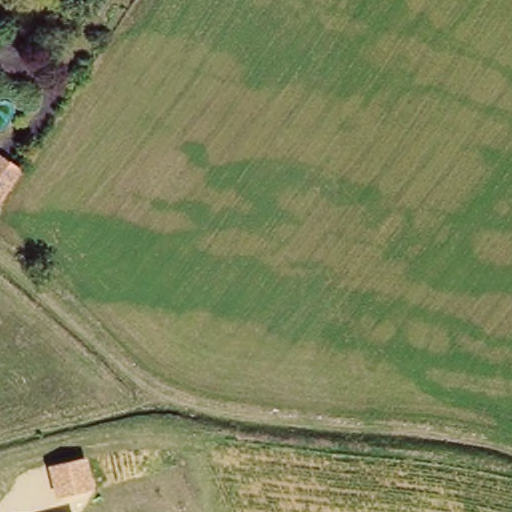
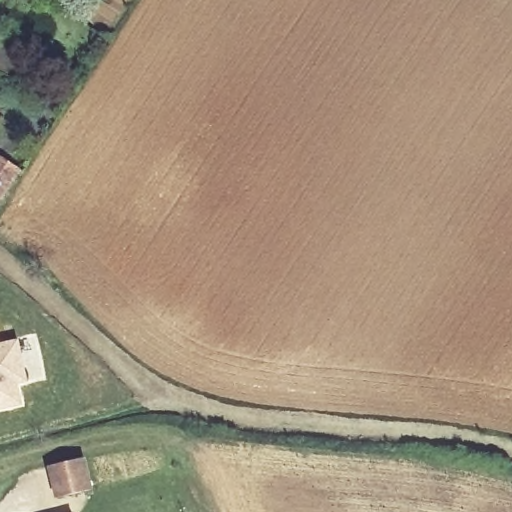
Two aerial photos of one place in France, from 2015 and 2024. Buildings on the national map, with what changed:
unchanged [(0,165),(7,155),(30,172),(8,203),(0,197),(0,165)]
new [(31,387),(20,389),(22,404),(0,409),(0,343),(20,339),(31,387)]
unchanged [(95,491),(57,499),(49,465),(88,457),(95,491)]

